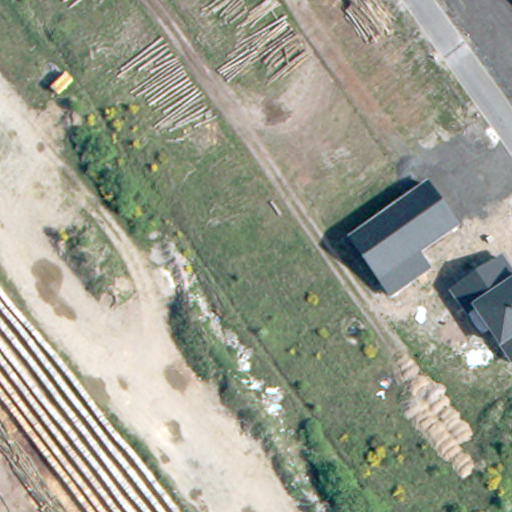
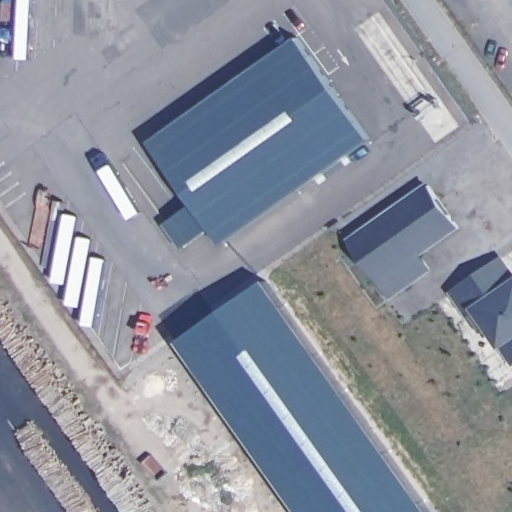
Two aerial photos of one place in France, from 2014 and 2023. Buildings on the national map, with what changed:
new [(194,201),(151,142),(299,37),(373,138),(224,243),(212,226),(182,248),(165,223),(194,201)]
unchanged [(427,181),(460,229),(424,254),(432,269),(391,299),(346,239),(427,181)]
unchanged [(475,311),(467,315),(451,292),(502,256),(512,273),(512,366),(475,311)]
new [(432,512),(304,512),(181,339),(266,279),(432,512)]

